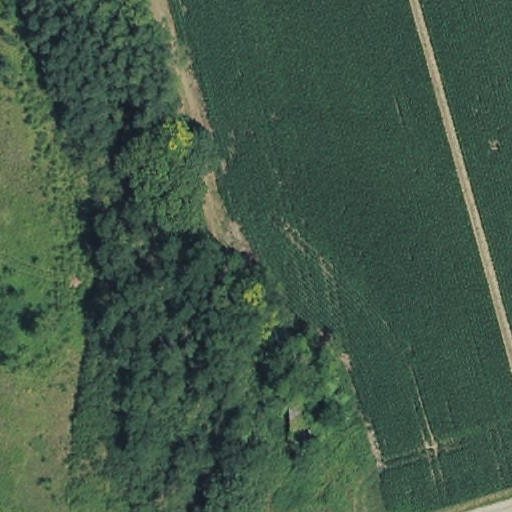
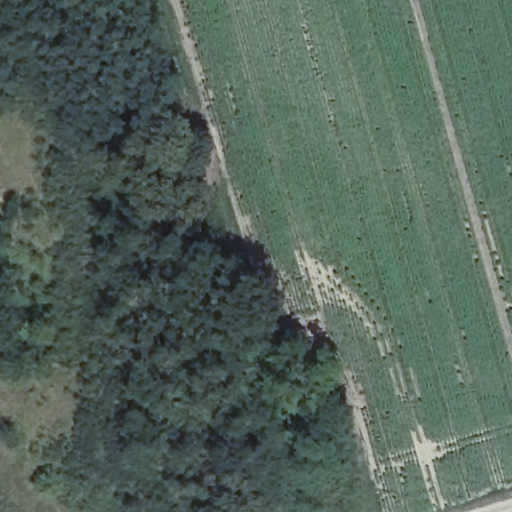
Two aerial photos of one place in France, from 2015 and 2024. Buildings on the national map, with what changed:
unchanged [(292,384),(317,383),(324,442),(299,443),(292,384)]

